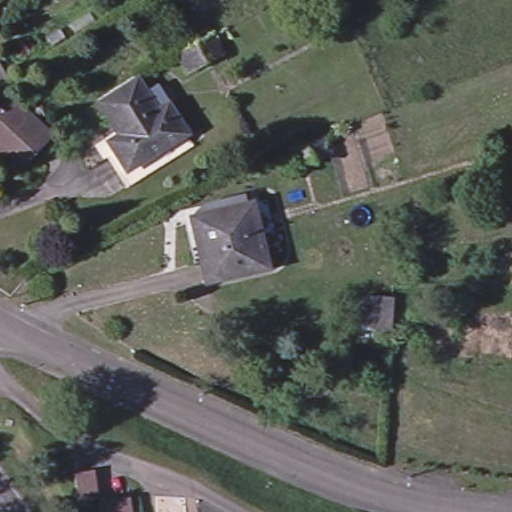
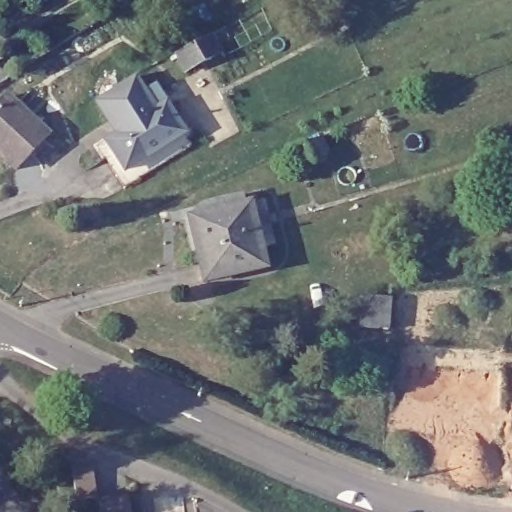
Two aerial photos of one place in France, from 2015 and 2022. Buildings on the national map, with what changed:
unchanged [(220,51),(185,70),(175,52),(211,34),(220,51)]
unchanged [(122,171),(115,160),(102,140),(112,132),(85,90),(123,66),(132,80),(144,74),(174,122),(181,134),(122,171)]
unchanged [(0,82),(0,68),(7,79),(0,82)]
unchanged [(0,103),(7,96),(47,135),(15,169),(0,155),(0,103)]
unchanged [(320,136),(327,151),(295,165),(288,150),(320,136)]
unchanged [(244,210),(250,208),(262,205),(272,247),(260,250),(265,272),(205,286),(200,265),(191,267),(180,214),(201,209),(241,199),(244,210)]
unchanged [(390,297),(387,328),(360,326),(363,295),(390,297)]
unchanged [(92,470),(96,497),(77,500),(72,472),(92,470)]
unchanged [(130,512),(100,512),(98,501),(127,496),(130,512)]

